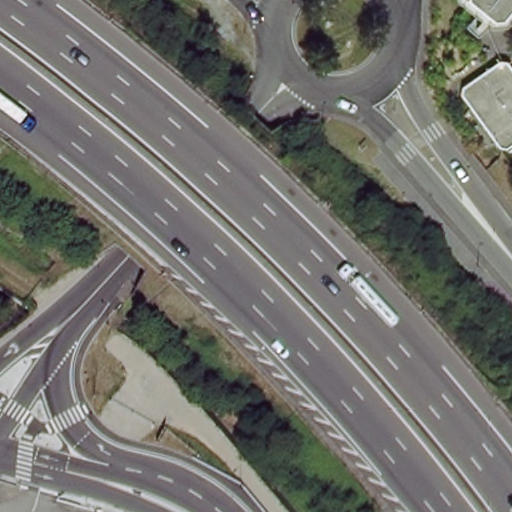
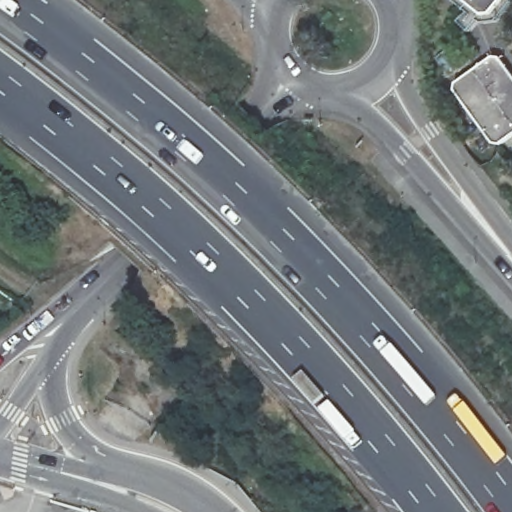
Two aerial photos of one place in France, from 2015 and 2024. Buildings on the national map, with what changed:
unchanged [(501,9),(487,11),(473,0),(509,0),(501,9)]
unchanged [(490,52),(502,53),(512,66),(512,133),(505,137),(495,136),(460,85),(460,75),(490,52)]

